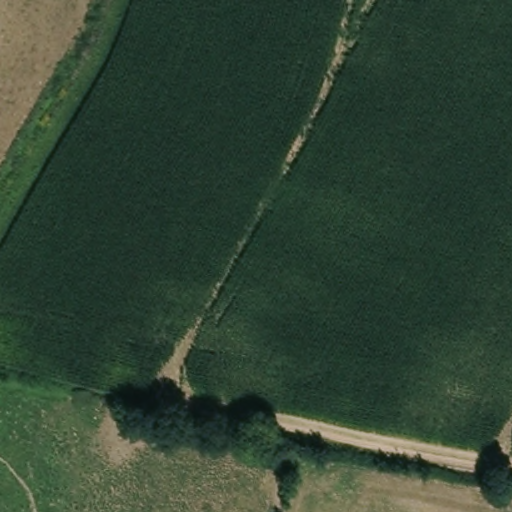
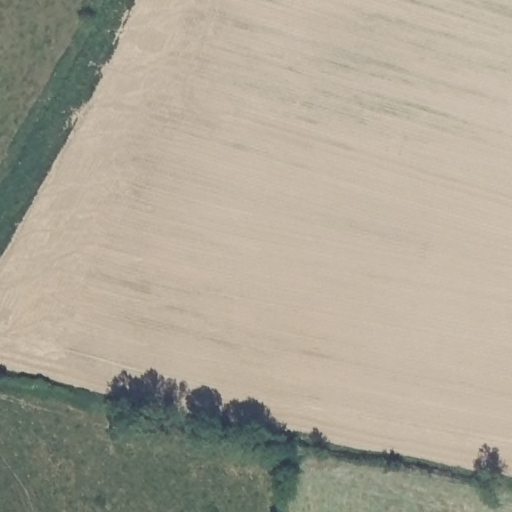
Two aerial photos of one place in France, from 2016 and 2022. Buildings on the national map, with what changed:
[]

